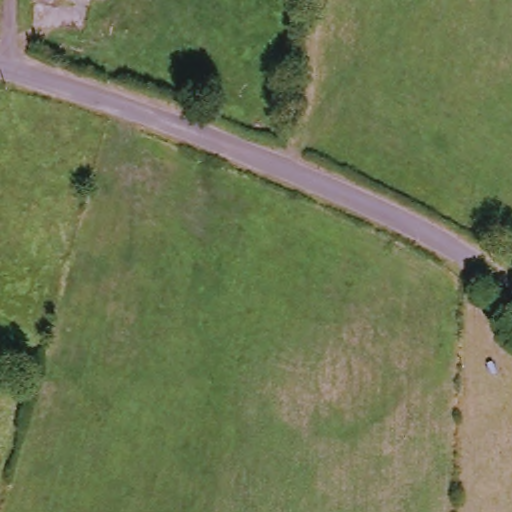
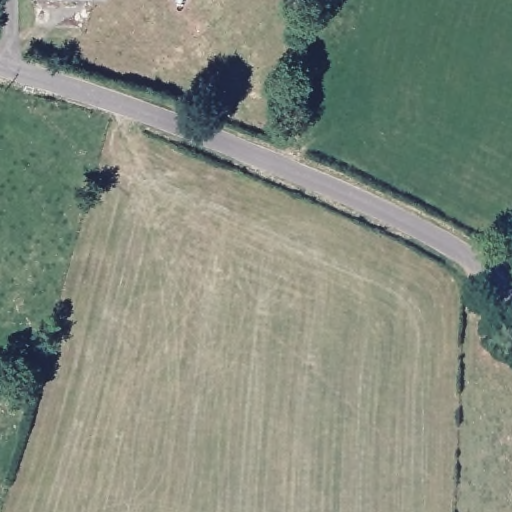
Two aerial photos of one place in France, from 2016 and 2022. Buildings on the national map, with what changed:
unchanged [(38,0),(51,0),(38,1),(38,0)]

